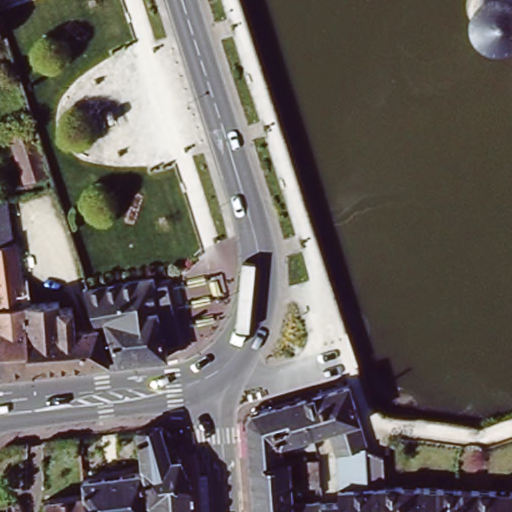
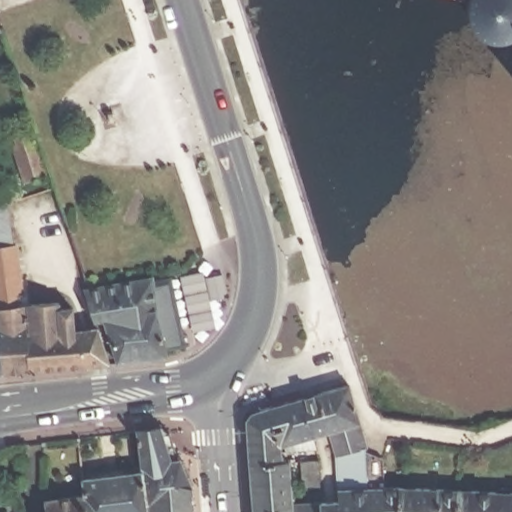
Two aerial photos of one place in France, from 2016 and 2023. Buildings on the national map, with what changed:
unchanged [(511,32),(505,35),(500,37),(493,37),(487,36),(481,34),(475,29),(470,24),(467,18),(465,9),(465,2),(466,0),(512,0),(512,34),(511,32)]
unchanged [(14,145),(37,137),(51,182),(28,189),(14,145)]
unchanged [(17,305),(28,373),(0,376),(0,270),(12,270),(17,305)]
unchanged [(164,277),(182,351),(105,366),(92,327),(87,291),(164,277)]
unchanged [(92,327),(105,366),(80,369),(28,373),(17,305),(25,303),(33,303),(52,301),(55,329),(92,327)]
unchanged [(252,467),(248,416),(302,401),(317,397),(349,387),(367,446),(366,447),(335,456),(329,435),(313,439),(282,448),(282,466),(252,467)]
unchanged [(144,468),(141,438),(167,436),(174,440),(182,467),(144,468)]
unchanged [(369,512),(368,488),(367,450),(383,457),(383,486),(402,487),(400,512),(369,512)]
unchanged [(282,466),(290,465),(292,505),(323,502),(338,501),(338,490),(368,488),(369,512),(255,512),(252,467),(282,466)]
unchanged [(144,468),(182,467),(185,466),(197,494),(197,512),(148,512),(145,476),(144,468)]
unchanged [(148,512),(96,512),(95,499),(92,481),(145,476),(148,512)]
unchanged [(457,492),(456,512),(400,512),(402,487),(457,492)]
unchanged [(512,496),(512,512),(456,512),(457,492),(512,496)]
unchanged [(95,499),(96,512),(51,512),(50,506),(95,499)]

